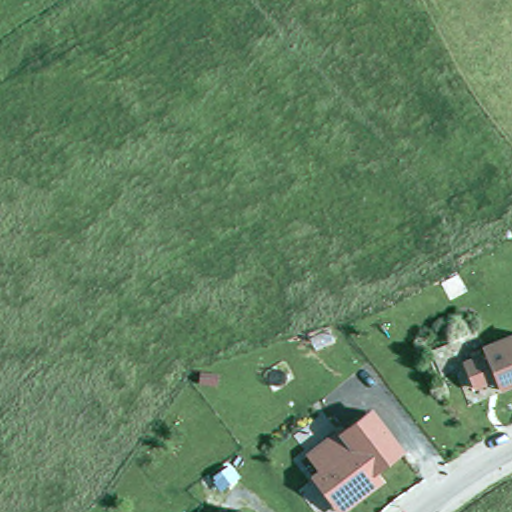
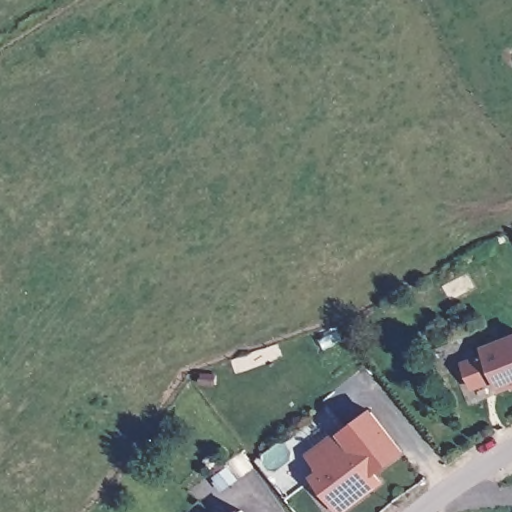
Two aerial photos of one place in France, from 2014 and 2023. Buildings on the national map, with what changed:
unchanged [(473,380),(463,358),(486,349),(483,343),(512,329),(512,377),(505,380),(500,382),(495,372),(473,380)]
unchanged [(403,451),(376,472),(385,483),(345,512),(335,512),(307,474),(315,468),(305,455),(372,406),(403,451)]
unchanged [(242,506),(246,512),(234,512),(242,506)]

